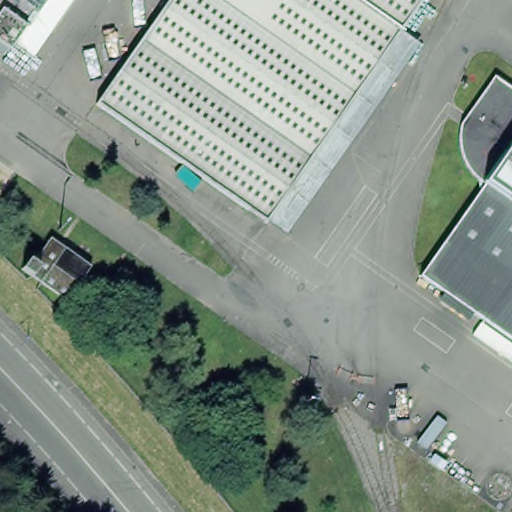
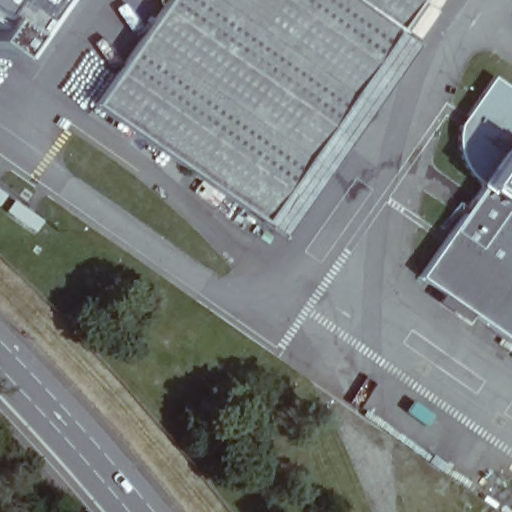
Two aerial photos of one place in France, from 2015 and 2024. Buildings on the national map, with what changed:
unchanged [(11,49),(3,56),(0,54),(0,0),(48,0),(15,48),(11,49)]
unchanged [(267,222),(95,105),(167,0),(356,0),(400,30),(267,222)]
unchanged [(356,0),(421,0),(400,30),(356,0)]
unchanged [(419,43),(287,237),(267,222),(400,30),(419,43)]
unchanged [(453,171),(447,154),(450,130),(483,83),(512,102),(512,350),(414,284),(470,195),(453,171)]
demolished [(68,300),(40,281),(20,268),(28,257),(33,259),(51,236),(65,246),(93,265),(68,300)]

